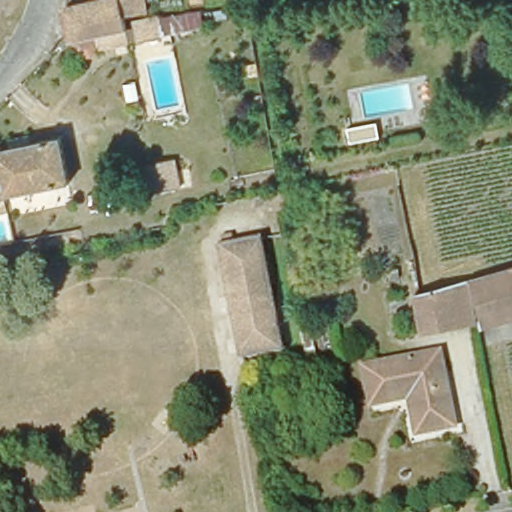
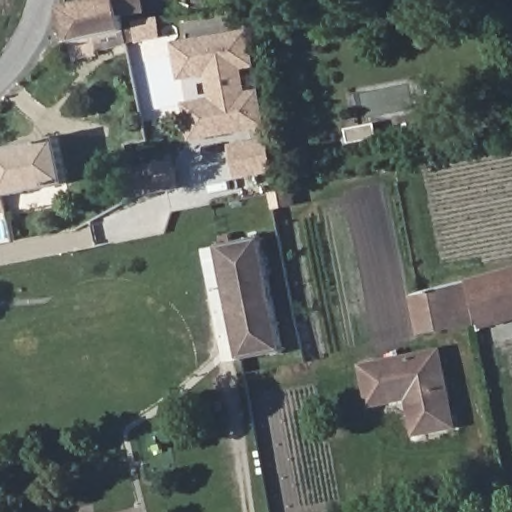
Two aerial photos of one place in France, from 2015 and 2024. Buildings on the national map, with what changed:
unchanged [(122,16),(119,1),(93,4),(92,0),(144,0),(146,12),(122,16)]
unchanged [(99,38),(72,43),(69,30),(65,9),(74,8),(93,4),(119,1),(122,16),(122,21),(124,26),(125,34),(137,31),(136,25),(157,21),(160,41),(139,44),(101,51),(99,38)]
new [(211,98),(207,76),(180,81),(172,43),(250,30),(256,68),(244,70),(248,91),(261,89),(268,128),(190,142),(184,103),(211,98)]
new [(236,180),(230,145),(270,138),(276,173),(236,180)]
unchanged [(0,153),(59,141),(69,184),(2,198),(0,186),(0,153)]
unchanged [(181,188),(176,189),(151,194),(149,183),(137,186),(133,170),(145,167),(175,161),(181,188)]
unchanged [(0,199),(0,186),(2,198),(0,199)]
unchanged [(282,211),(278,198),(295,195),(297,208),(282,211)]
unchanged [(247,363),(225,249),(227,249),(229,248),(227,239),(237,237),(239,246),(267,241),(289,354),(247,363)]
unchanged [(477,323),(470,283),(512,271),(512,322),(479,332),(477,323)]
unchanged [(470,283),(477,323),(424,335),(415,300),(420,298),(470,283)]
unchanged [(441,354),(456,428),(419,436),(411,399),(373,407),(366,370),(441,354)]

